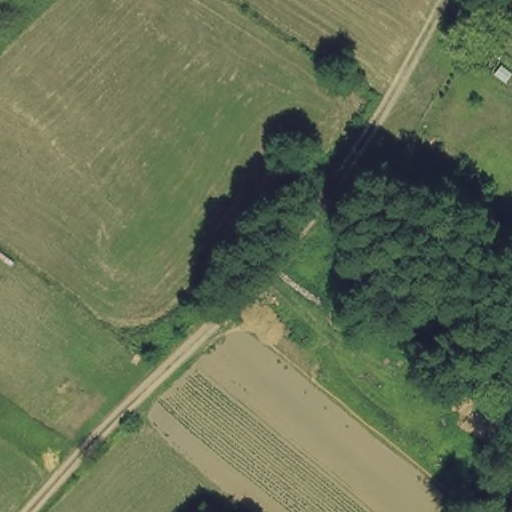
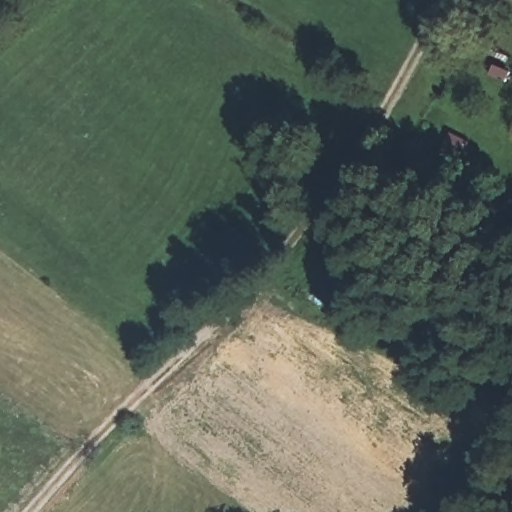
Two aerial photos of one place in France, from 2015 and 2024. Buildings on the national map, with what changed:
unchanged [(500,0),(512,0),(512,21),(493,10),(500,0)]

